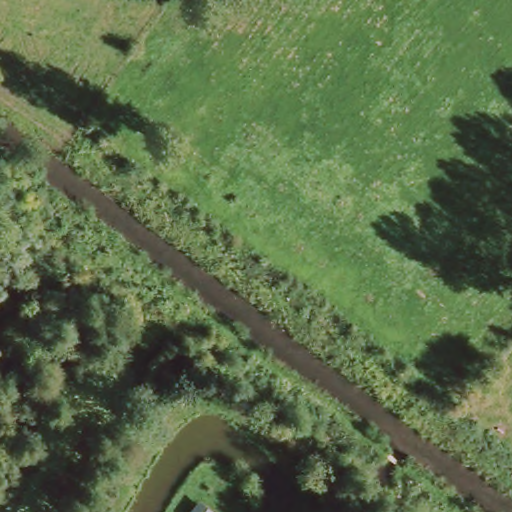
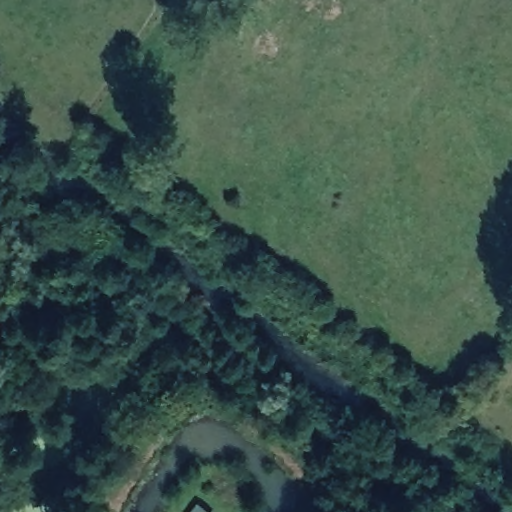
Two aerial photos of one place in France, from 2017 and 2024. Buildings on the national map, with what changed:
unchanged [(216,511),(215,512),(192,512),(200,500),(216,511)]

